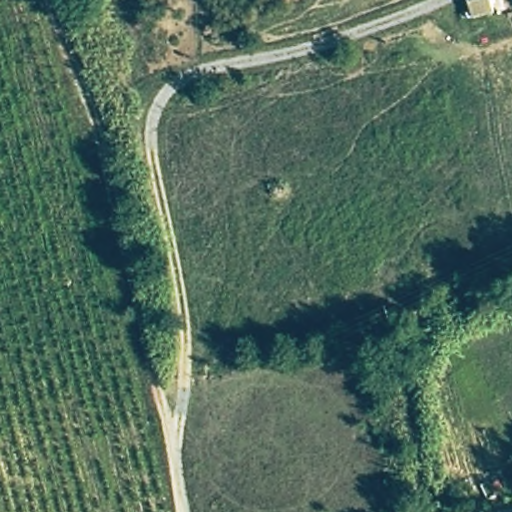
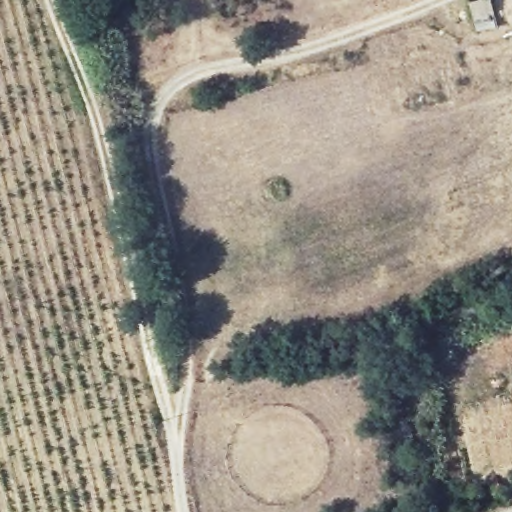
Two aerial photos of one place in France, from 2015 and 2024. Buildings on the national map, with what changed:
unchanged [(471,0),(490,0),(493,12),(470,17),(465,1),(471,0)]

